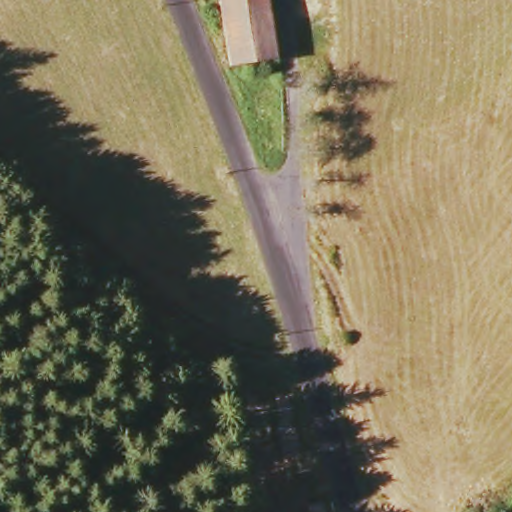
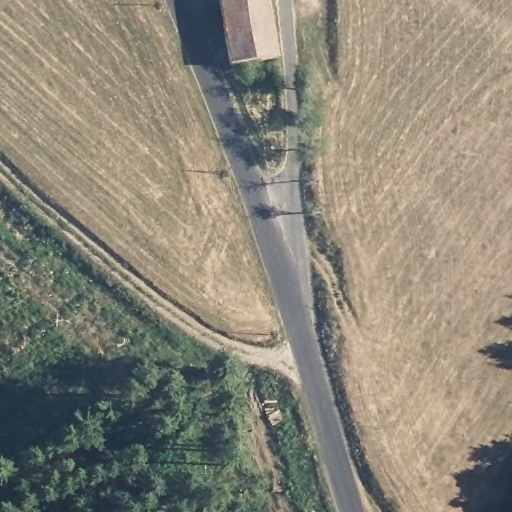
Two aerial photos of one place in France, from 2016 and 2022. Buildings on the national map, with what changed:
unchanged [(226,61),(220,0),(266,0),(274,61),(229,68),(226,61)]

